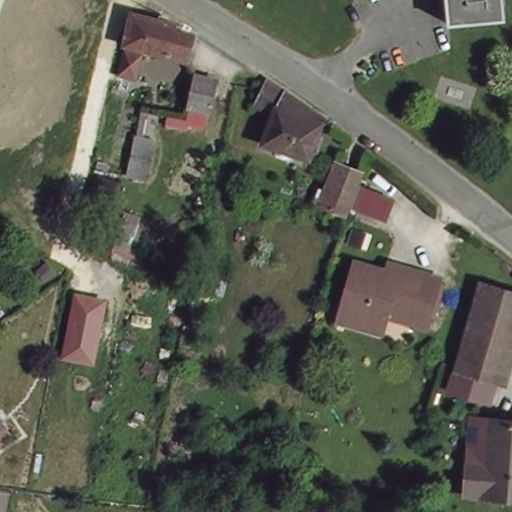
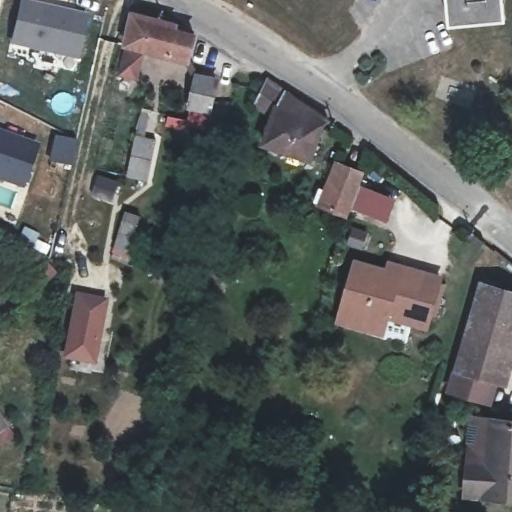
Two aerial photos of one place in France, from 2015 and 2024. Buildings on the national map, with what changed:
new [(9,45),(19,0),(29,0),(87,14),(77,60),(9,45)]
unchanged [(447,0),(500,0),(501,0),(503,0),(504,0),(505,18),(450,23),(447,0)]
unchanged [(194,35),(188,60),(125,44),(133,12),(177,23),(175,29),(194,35)]
unchanged [(136,78),(119,74),(125,49),(142,53),(136,78)]
unchanged [(197,74),(216,79),(209,110),(190,105),(197,74)]
unchanged [(334,122),(332,128),(320,164),(274,148),(283,121),(266,109),(277,86),(278,83),(334,122)]
new [(36,143),(20,187),(0,181),(0,131),(36,143)]
unchanged [(137,136),(156,139),(148,178),(129,175),(137,136)]
unchanged [(386,220),(354,208),(350,217),(322,206),(338,165),(366,176),(362,187),(394,200),(386,220)]
unchanged [(140,216),(139,221),(129,251),(115,246),(124,218),(126,211),(140,216)]
unchanged [(344,325),(347,315),(361,267),(393,276),(395,268),(405,271),(445,283),(431,331),(392,320),(390,328),(387,338),(344,325)]
unchanged [(224,273),(220,293),(213,292),(208,316),(191,313),(200,268),(224,273)]
unchanged [(512,298),(512,349),(503,382),(463,371),(486,290),(512,298)]
unchanged [(108,299),(96,365),(61,359),(75,292),(108,299)]
unchanged [(4,431),(0,434),(0,425),(4,431)]
unchanged [(477,471),(477,465),(489,466),(492,425),(512,427),(512,502),(475,499),(475,494),(467,493),(468,470),(477,471)]

